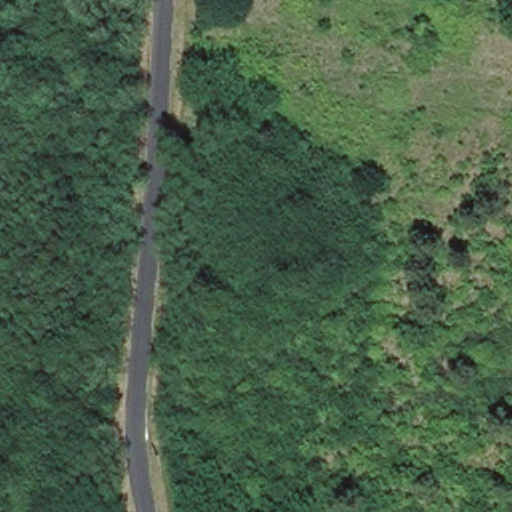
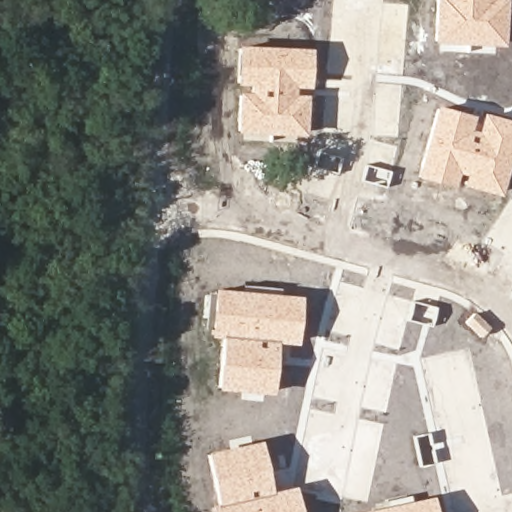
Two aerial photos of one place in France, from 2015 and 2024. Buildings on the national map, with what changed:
new [(432,43),(436,0),(506,0),(505,47),(432,43)]
new [(239,92),(251,92),(251,86),(236,85),(238,46),(312,49),(308,135),(236,134),(239,92)]
new [(471,130),(477,131),(482,112),(512,121),(512,157),(501,197),(466,184),(465,176),(459,174),(455,189),(417,178),(437,106),(475,116),(471,130)]
new [(210,335),(214,288),(302,296),(298,345),(278,341),(273,396),(217,391),(222,336),(210,335)]
new [(296,487),(301,512),(211,512),(209,505),(218,506),(207,453),(262,441),(273,493),(296,487)]
new [(433,497),(436,512),(361,512),(433,497)]

